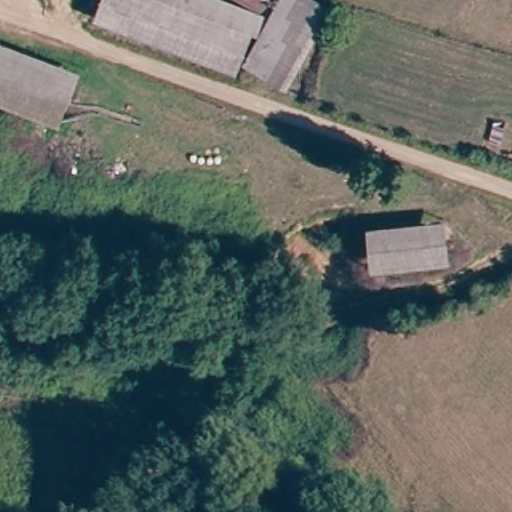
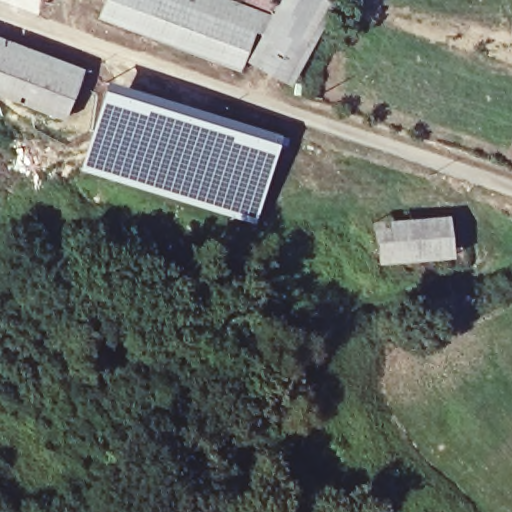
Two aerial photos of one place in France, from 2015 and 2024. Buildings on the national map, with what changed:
unchanged [(95,13),(101,0),(218,0),(247,12),(225,64),(95,13)]
unchanged [(252,1),(247,12),(218,0),(249,0),(252,1)]
unchanged [(247,12),(252,1),(252,0),(327,0),(329,1),(290,87),(246,62),(243,72),(225,64),(247,12)]
unchanged [(252,1),(249,0),(252,0),(252,1)]
unchanged [(84,73),(68,112),(0,84),(0,39),(84,73)]
new [(100,87),(128,96),(158,102),(282,142),(254,224),(76,169),(100,87)]
unchanged [(459,253),(382,260),(378,219),(455,212),(459,253)]

